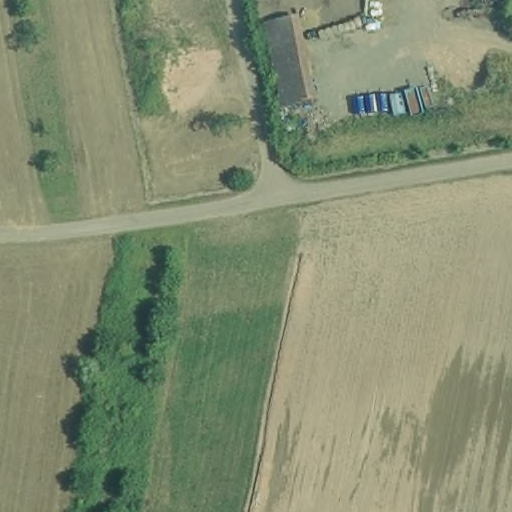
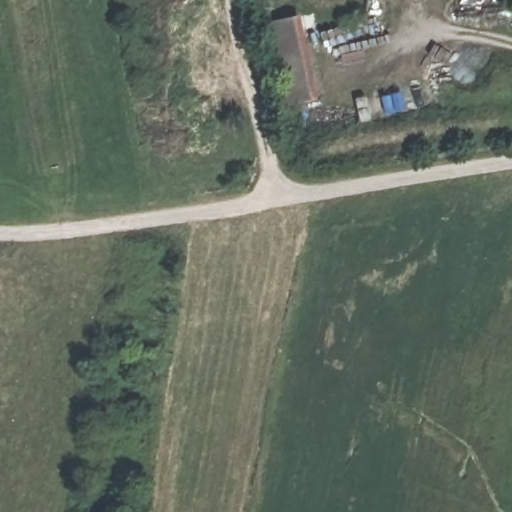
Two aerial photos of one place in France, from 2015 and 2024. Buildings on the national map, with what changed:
unchanged [(319,100),(283,107),(263,25),(301,16),(319,100)]

